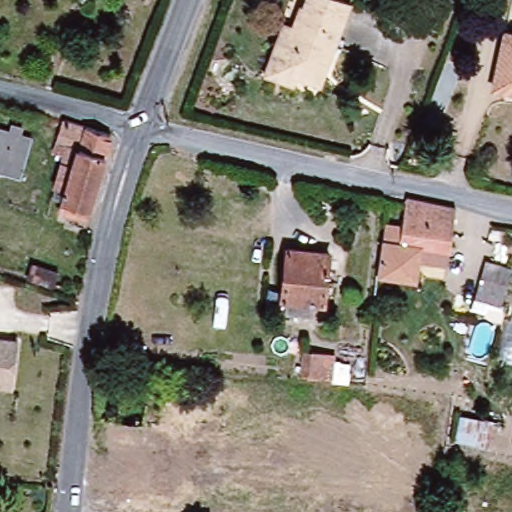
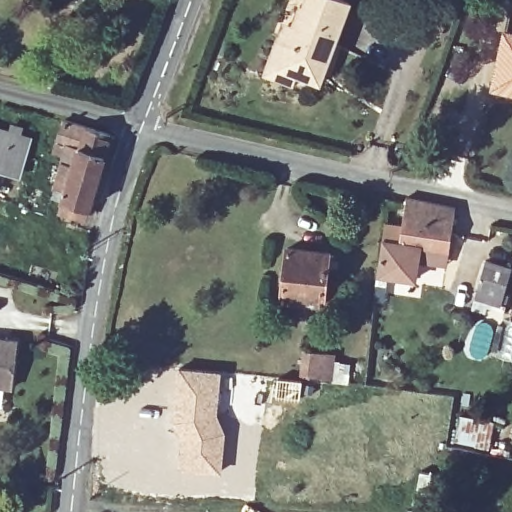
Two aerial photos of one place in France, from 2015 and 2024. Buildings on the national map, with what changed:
unchanged [(296,77),(290,86),(263,73),(276,40),(283,20),(297,25),(307,0),(350,0),(352,0),(321,83),(296,77)]
unchanged [(504,37),(512,39),(512,92),(492,88),(504,37)]
unchanged [(61,204),(65,193),(54,189),(65,150),(56,146),(62,123),(109,135),(86,210),(83,220),(57,212),(61,204)]
unchanged [(35,137),(21,178),(0,172),(0,127),(35,137)]
unchanged [(418,261),(413,281),(380,273),(382,260),(389,227),(403,228),(409,200),(456,210),(447,256),(445,267),(418,261)]
unchanged [(280,298),(286,247),(323,252),(318,302),(280,298)]
unchanged [(497,300),(472,295),(481,259),(504,264),(497,300)]
unchanged [(17,343),(11,389),(0,388),(0,342),(17,343)]
unchanged [(299,348),(338,353),(335,380),(297,375),(299,348)]
new [(176,366),(222,370),(219,412),(226,433),(221,473),(177,471),(177,447),(173,411),(176,366)]
new [(277,377),(302,380),(297,402),(273,398),(277,377)]
unchanged [(458,414),(495,422),(490,449),(452,442),(458,414)]

